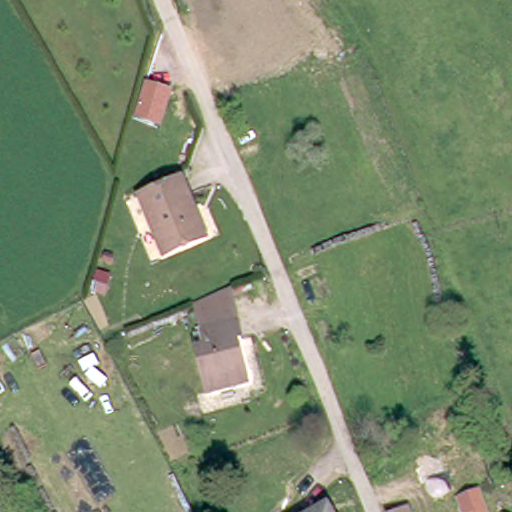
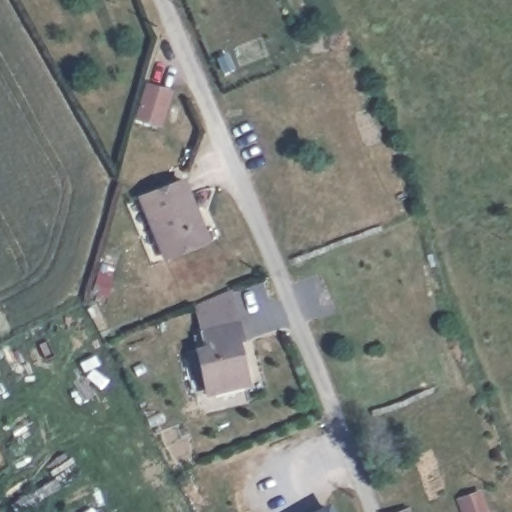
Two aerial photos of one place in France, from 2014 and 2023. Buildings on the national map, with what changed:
unchanged [(172,90),(162,127),(133,118),(144,82),(172,90)]
unchanged [(215,235),(172,252),(147,194),(191,176),(215,235)]
unchanged [(225,398),(207,357),(218,352),(201,312),(235,297),(253,340),(248,342),(267,383),(225,398)]
unchanged [(484,512),(465,512),(461,501),(477,495),(484,512)]
unchanged [(332,503),(336,512),(316,512),(332,503)]
unchanged [(427,512),(415,512),(425,508),(427,512)]

